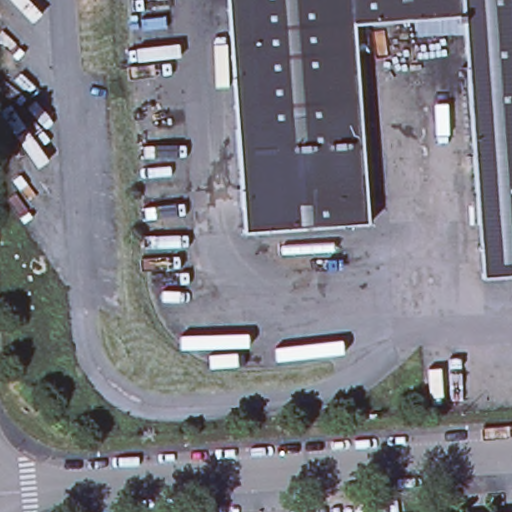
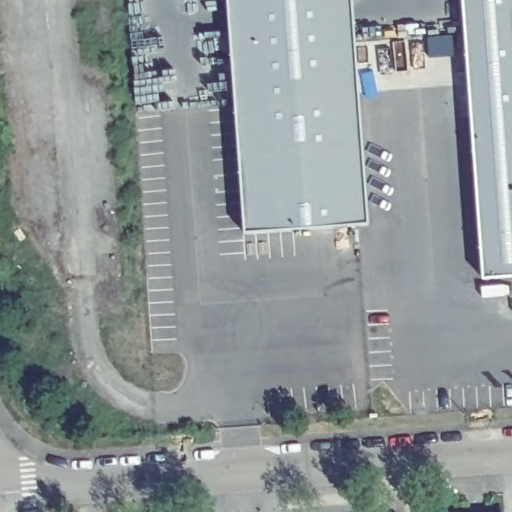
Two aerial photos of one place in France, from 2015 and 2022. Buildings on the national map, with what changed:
unchanged [(467,15),(454,15),(456,40),(419,44),(412,18),(359,22),(371,223),(249,230),(232,0),(512,0),(512,274),(486,276),(467,15)]

